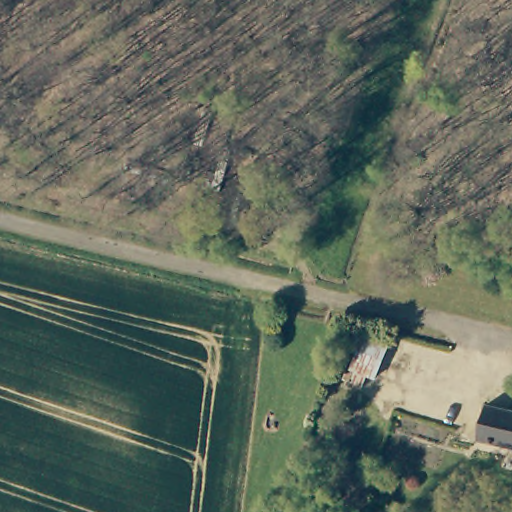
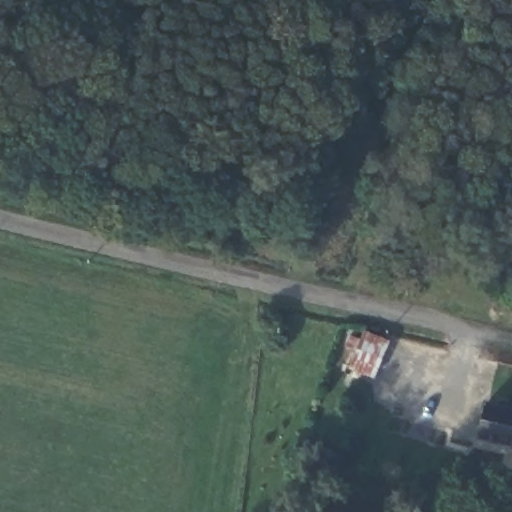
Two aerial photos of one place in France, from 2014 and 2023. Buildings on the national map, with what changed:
unchanged [(372,372),(348,365),(363,327),(387,339),(372,372)]
unchanged [(490,401),(512,406),(512,445),(482,437),(490,401)]

